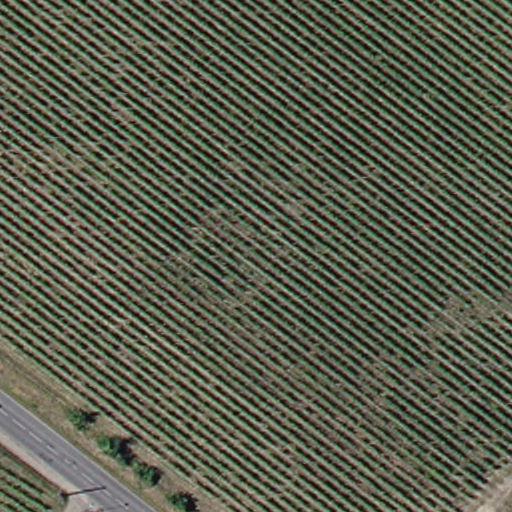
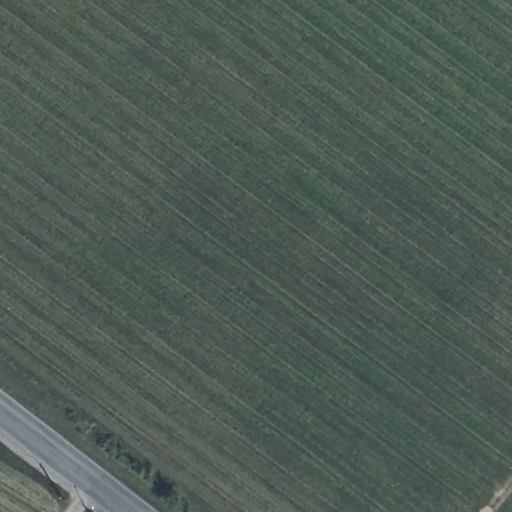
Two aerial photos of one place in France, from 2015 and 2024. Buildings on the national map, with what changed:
[]

